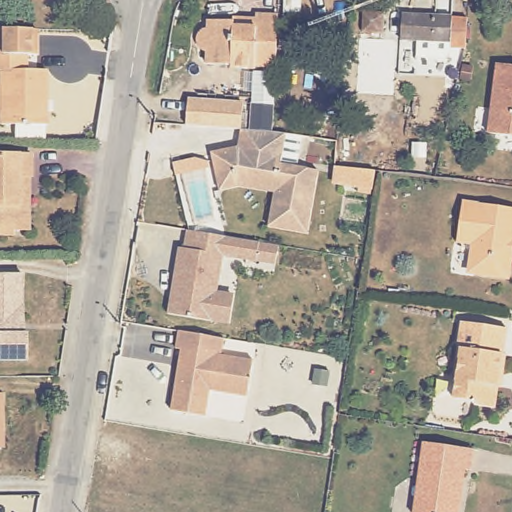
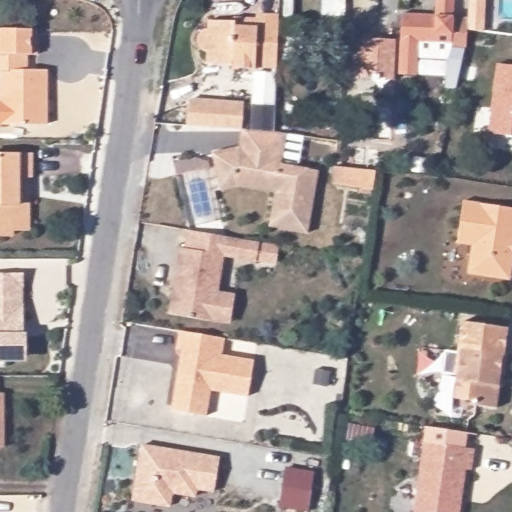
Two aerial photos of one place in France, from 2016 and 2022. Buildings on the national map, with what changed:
unchanged [(363,19),(364,0),(375,0),(385,0),(383,20),(363,19)]
unchanged [(388,33),(390,7),(455,13),(454,23),(453,43),(437,42),(434,52),(404,50),(405,34),(388,33)]
unchanged [(255,66),(255,71),(233,70),(233,65),(209,64),(210,52),(203,51),(196,47),(195,41),(195,37),(196,33),(199,31),(204,29),(207,29),(212,29),(212,20),(237,21),(237,29),(259,29),(259,18),(281,19),(278,66),(255,66)]
unchanged [(36,55),(26,55),(26,69),(46,69),(46,125),(1,124),(2,70),(0,70),(0,27),(10,27),(36,28),(36,55)]
unchanged [(500,63),(512,65),(512,136),(490,133),(500,63)]
unchanged [(190,102),(243,105),(243,132),(242,132),(189,129),(190,102)]
unchanged [(220,193),(217,178),(212,156),(239,150),(242,132),(243,132),(252,133),(254,106),(275,106),(274,134),(282,135),(278,164),(315,170),(306,232),(268,227),(272,194),(240,189),(220,193)]
unchanged [(31,180),(31,201),(31,234),(15,234),(15,242),(0,242),(0,162),(34,162),(34,180),(31,180)]
unchanged [(374,191),(344,187),(334,186),(337,167),(346,168),(377,172),(374,191)]
unchanged [(459,241),(466,200),(512,208),(512,274),(512,276),(502,280),(477,276),(470,267),(474,245),(459,241)]
unchanged [(230,325),(213,323),(170,317),(179,250),(184,251),(187,232),(257,242),(277,245),(274,264),(255,261),(222,257),(217,293),(234,295),(230,325)]
unchanged [(24,337),(24,358),(0,358),(0,261),(21,260),(21,276),(21,319),(16,319),(16,337),(24,337)]
unchanged [(505,355),(502,377),(496,376),(491,407),(473,403),(469,399),(453,397),(456,374),(452,373),(461,321),(505,329),(501,354),(505,355)]
unchanged [(225,339),(222,356),(254,361),(250,396),(212,391),(208,417),(174,413),(179,373),(180,366),(182,352),(177,351),(179,333),(190,335),(225,339)]
unchanged [(5,428),(0,428),(0,396),(5,395),(5,428)]
unchanged [(0,450),(0,428),(1,449),(0,450)]
unchanged [(462,512),(417,512),(431,443),(478,452),(475,472),(468,471),(462,512)]
new [(161,448),(168,449),(219,458),(214,491),(196,488),(195,496),(172,492),(170,506),(133,500),(142,445),(161,448)]
new [(287,467),(314,472),(307,512),(280,507),(287,467)]

